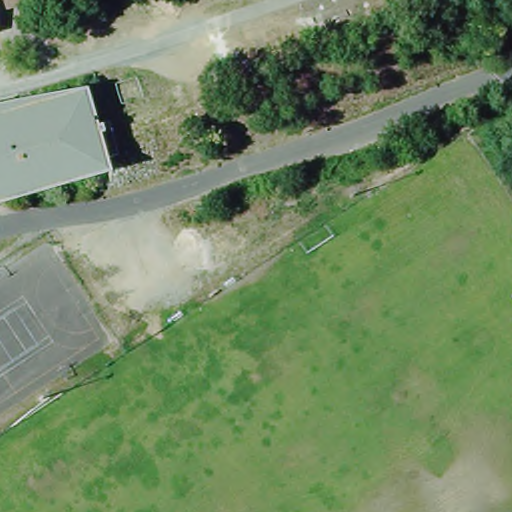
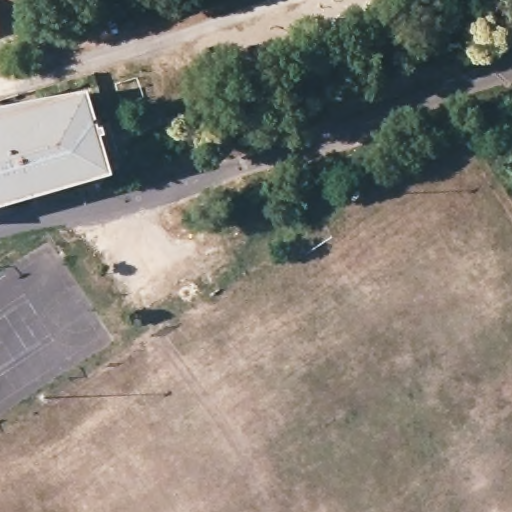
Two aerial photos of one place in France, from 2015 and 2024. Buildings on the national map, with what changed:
unchanged [(1,9),(0,4),(0,0),(35,0),(35,1),(1,9)]
unchanged [(98,126),(109,125),(118,154),(105,155),(107,166),(112,165),(115,176),(0,205),(0,108),(87,91),(98,126)]

